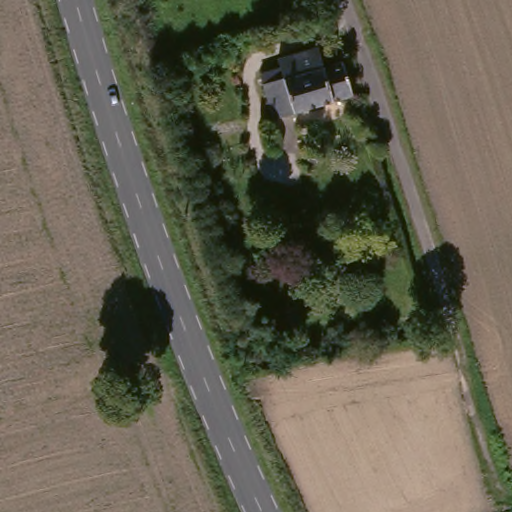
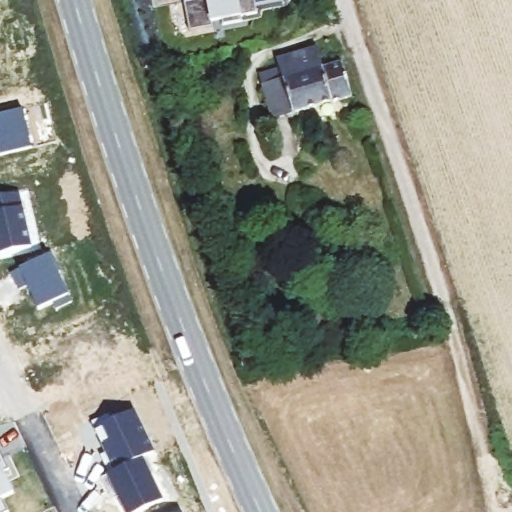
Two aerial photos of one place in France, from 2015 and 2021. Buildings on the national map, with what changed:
new [(282,0),(254,5),(256,13),(240,16),(241,21),(221,24),(221,19),(210,21),(212,26),(188,30),(183,1),(188,0),(282,0)]
unchanged [(324,75),(344,69),(354,103),(274,126),(261,81),(280,76),(278,66),(318,56),(324,75)]
new [(23,109),(32,148),(0,155),(0,114),(23,109)]
new [(18,193),(31,247),(0,254),(0,197),(18,193)]
new [(52,254),(60,271),(58,273),(72,302),(56,309),(53,303),(39,310),(28,286),(19,290),(11,274),(52,254)]
new [(107,416),(113,421),(133,411),(153,454),(145,458),(109,475),(100,457),(106,454),(91,424),(107,416)]
new [(8,469),(2,472),(12,493),(1,499),(7,512),(6,512),(0,512),(0,453),(8,469)]
new [(109,475),(145,458),(153,475),(150,475),(163,501),(139,512),(124,512),(117,498),(112,501),(101,479),(109,475)]

